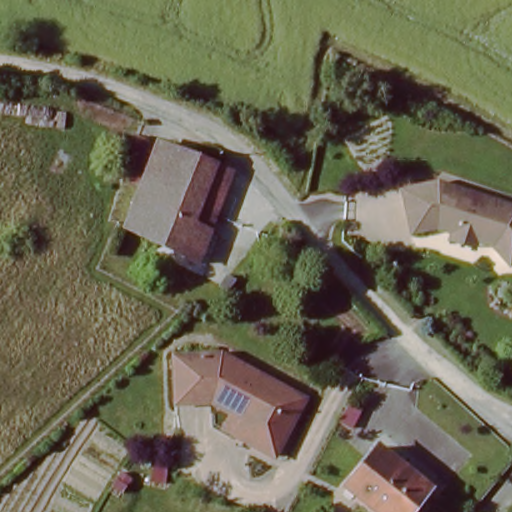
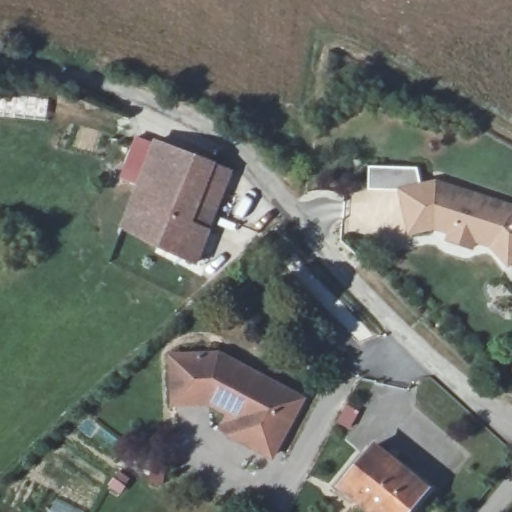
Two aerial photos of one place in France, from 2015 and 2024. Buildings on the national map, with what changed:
unchanged [(153,140),(209,160),(224,166),(207,216),(192,263),(118,237),(124,223),(153,140)]
unchanged [(447,227),(436,221),(406,221),(405,177),(414,177),(446,176),(512,215),(512,267),(502,268),(480,268),(480,246),(470,241),(460,235),(457,238),(444,232),(447,227)]
unchanged [(244,418),(214,403),(179,408),(173,361),(220,352),(308,398),(278,456),(258,445),(236,434),(244,418)]
unchanged [(335,490),(370,450),(375,454),(425,494),(410,512),(364,512),(345,498),(335,490)]

